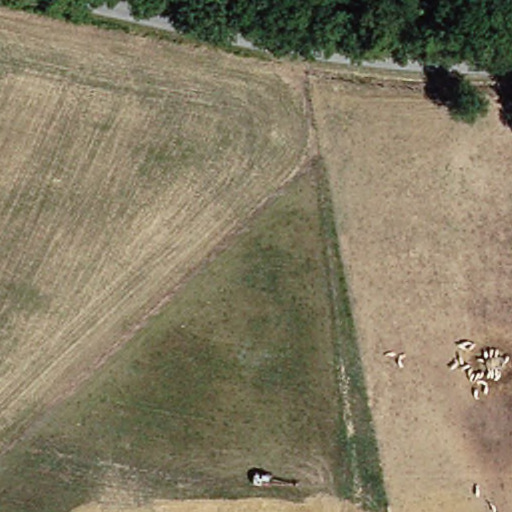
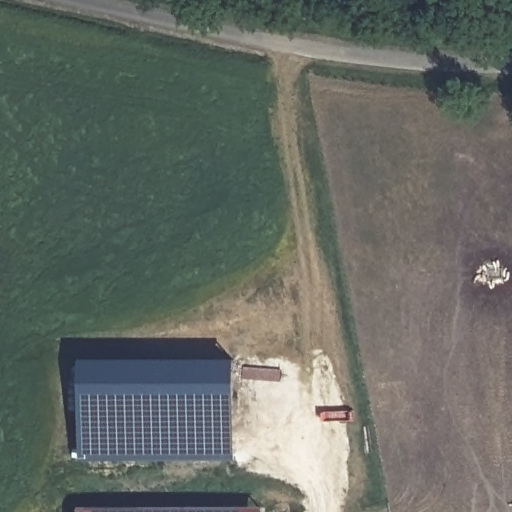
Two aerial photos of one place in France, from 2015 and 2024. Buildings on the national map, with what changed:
new [(80,361),(235,360),(235,461),(82,460),(80,361)]
new [(262,510),(263,512),(81,512),(81,510),(262,510)]

